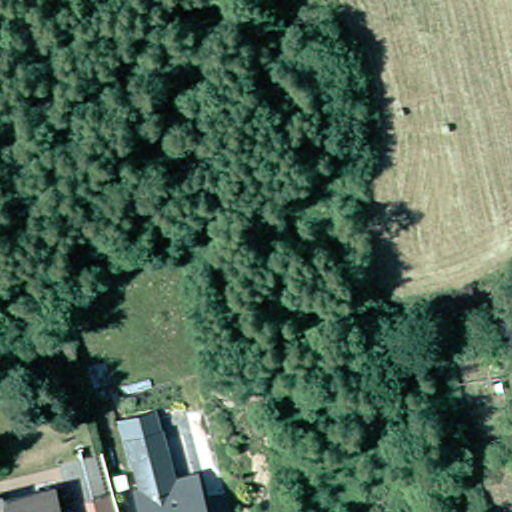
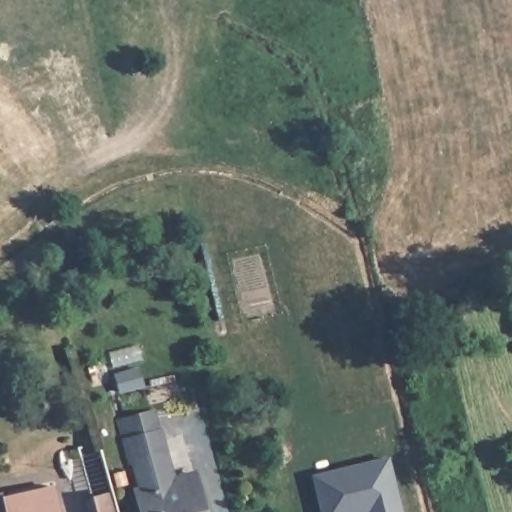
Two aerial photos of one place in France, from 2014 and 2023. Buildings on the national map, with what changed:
unchanged [(118,420),(157,410),(162,427),(165,426),(173,458),(143,467),(150,498),(145,499),(148,512),(140,512),(118,420)]
unchanged [(145,499),(150,498),(143,467),(173,458),(181,488),(205,483),(206,489),(211,512),(148,512),(145,499)]
new [(392,460),(404,512),(326,512),(317,476),(392,460)]
unchanged [(119,512),(90,512),(85,495),(112,489),(119,512)]
unchanged [(69,512),(0,512),(0,498),(7,496),(8,501),(64,490),(69,512)]

